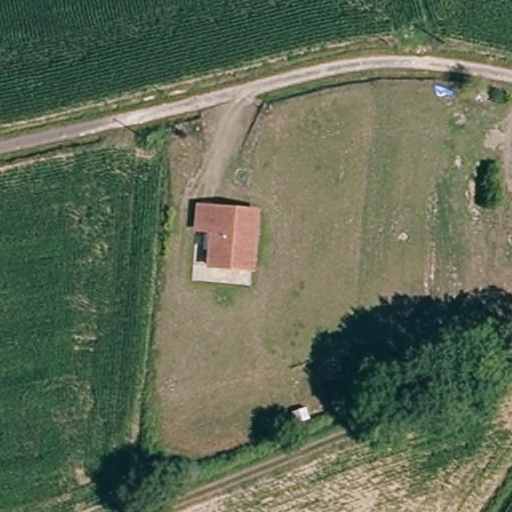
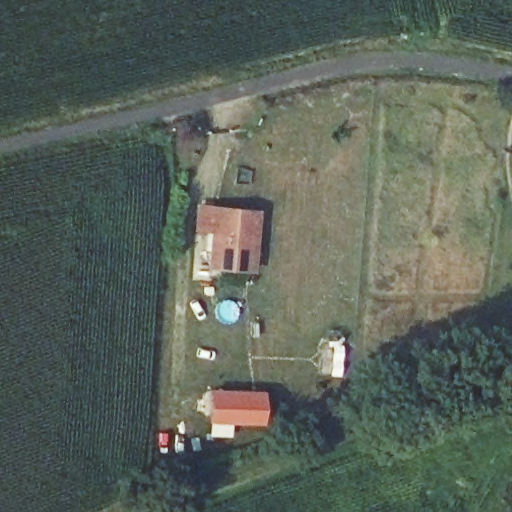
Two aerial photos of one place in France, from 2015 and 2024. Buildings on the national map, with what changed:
unchanged [(259,210),(255,274),(209,270),(211,233),(195,232),(199,203),(259,210)]
new [(210,388),(266,389),(264,423),(210,424),(210,388)]

